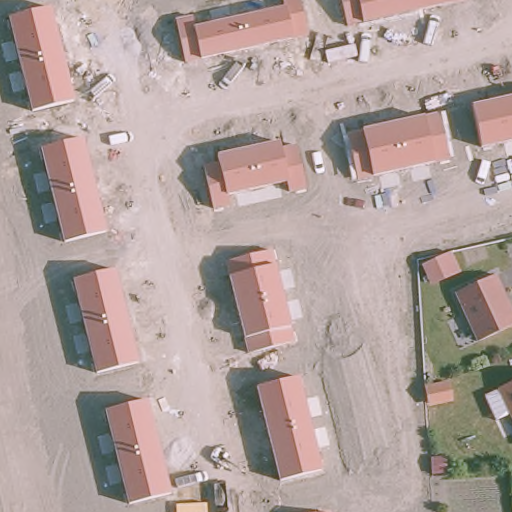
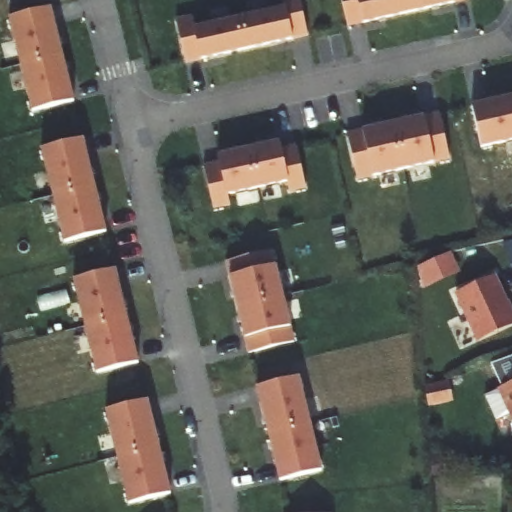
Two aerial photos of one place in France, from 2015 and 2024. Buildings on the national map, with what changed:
unchanged [(194,16),(196,26),(284,8),(282,0),(300,0),(308,37),(185,63),(175,19),(194,16)]
unchanged [(470,0),(347,28),(341,0),(470,0)]
unchanged [(52,8),(75,103),(31,112),(9,18),(52,8)]
unchanged [(512,143),(480,150),(472,106),(512,97),(512,143)]
unchanged [(443,114),(452,158),(354,182),(344,137),(443,114)]
unchanged [(84,138),(107,232),(62,243),(40,151),(84,138)]
unchanged [(220,162),(218,155),(280,141),(282,149),(297,146),(306,189),(289,193),(287,183),(229,196),(232,206),(213,210),(202,167),(220,162)]
unchanged [(272,250),(297,343),(247,355),(225,260),(272,250)]
unchanged [(117,270),(140,364),(95,374),(73,280),(117,270)]
unchanged [(511,302),(512,304),(512,328),(482,342),(460,293),(497,276),(510,303),(511,302)]
unchanged [(301,377),(323,472),(280,482),(257,388),(301,377)]
unchanged [(450,383),(453,402),(437,406),(433,387),(450,383)]
unchanged [(512,384),(512,410),(502,388),(512,384)]
unchanged [(149,400),(172,494),(128,505),(106,411),(149,400)]

